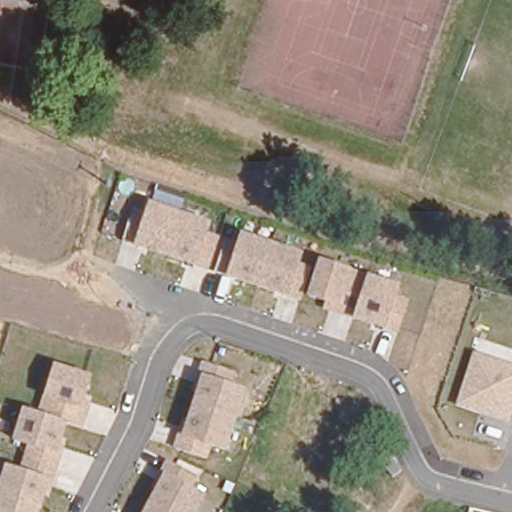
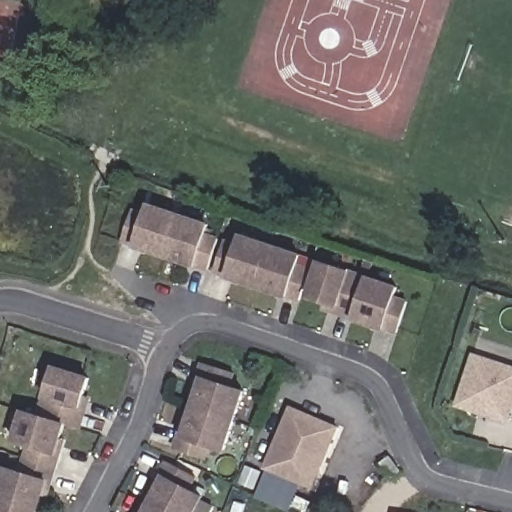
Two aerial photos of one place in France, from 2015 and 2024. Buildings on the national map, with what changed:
unchanged [(209,271),(122,242),(133,209),(146,211),(148,202),(211,223),(209,232),(220,236),(209,271)]
unchanged [(301,300),(214,273),(225,238),(240,243),(242,235),(303,252),(302,261),(312,264),(301,300)]
unchanged [(397,335),(320,312),(322,302),(306,300),(319,258),(402,285),(399,297),(409,300),(397,335)]
unchanged [(456,406),(473,353),(512,365),(512,416),(509,423),(456,406)]
unchanged [(226,452),(211,448),(206,459),(173,448),(182,417),(190,419),(199,393),(191,390),(203,361),(238,372),(234,385),(245,390),(226,452)]
unchanged [(5,466),(21,470),(26,446),(11,442),(21,410),(41,413),(56,365),(93,377),(86,400),(92,402),(83,430),(69,427),(44,512),(0,512),(0,484),(5,466)]
new [(288,406),(334,426),(326,446),(319,451),(316,457),(318,465),(309,486),(263,466),(288,406)]
unchanged [(157,490),(152,486),(166,461),(202,476),(196,488),(206,493),(197,512),(146,512),(157,490)]
new [(394,506),(417,512),(393,512),(394,506)]

